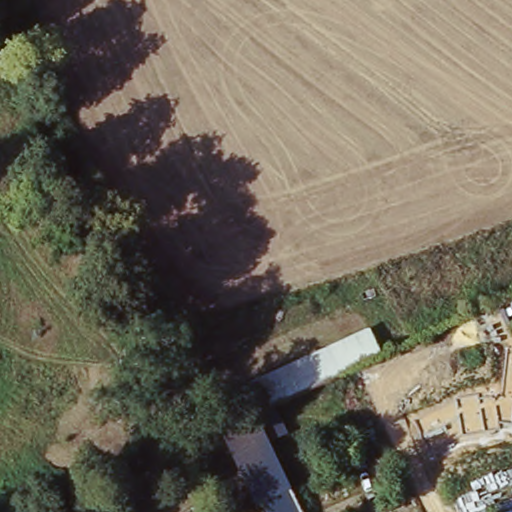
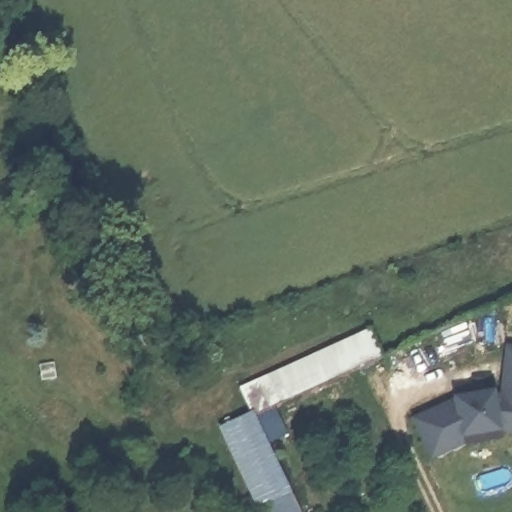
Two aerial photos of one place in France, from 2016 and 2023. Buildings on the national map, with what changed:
unchanged [(370,333),(382,361),(260,410),(250,387),(370,333)]
new [(452,397),(495,390),(500,391),(504,342),(512,343),(512,429),(499,427),(501,432),(461,438),(463,444),(431,457),(412,418),(452,397)]
unchanged [(260,503),(224,426),(255,411),(292,488),(281,493),(260,503)]
new [(264,512),(260,503),(292,488),(301,512),(264,512)]
demolished [(292,488),(303,512),(290,512),(281,493),(292,488)]

